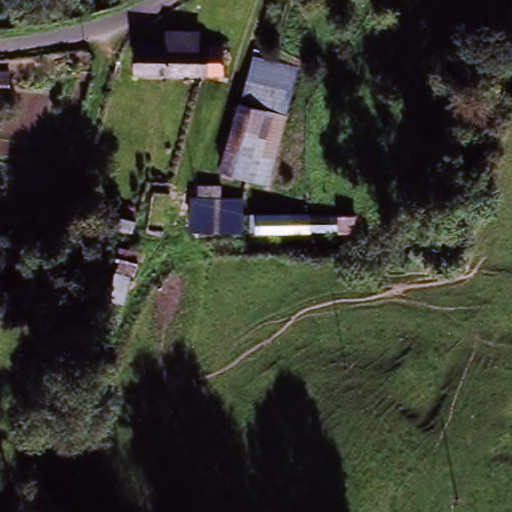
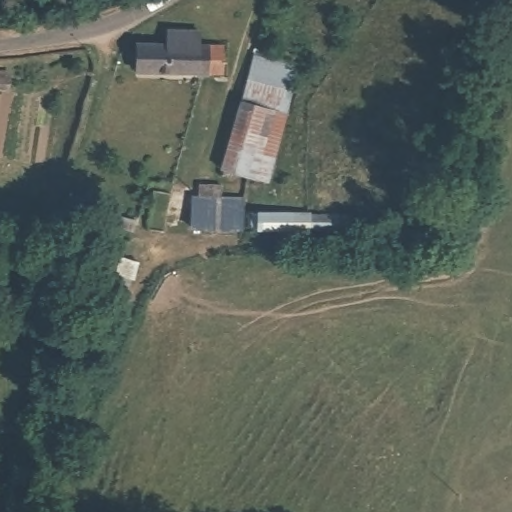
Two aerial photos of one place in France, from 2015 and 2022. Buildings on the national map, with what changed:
unchanged [(205,39),(212,39),(211,48),(226,49),(223,76),(214,76),(200,75),(134,73),(136,47),(169,48),(175,48),(191,48),(192,38),(205,39)]
unchanged [(297,65),(269,184),(220,172),(254,59),(297,65)]
unchanged [(214,194),(213,199),(233,200),(251,201),(249,228),(241,228),(216,227),(215,236),(198,236),(198,226),(201,193),(214,194)]
unchanged [(255,234),(255,215),(339,218),(338,234),(255,234)]

